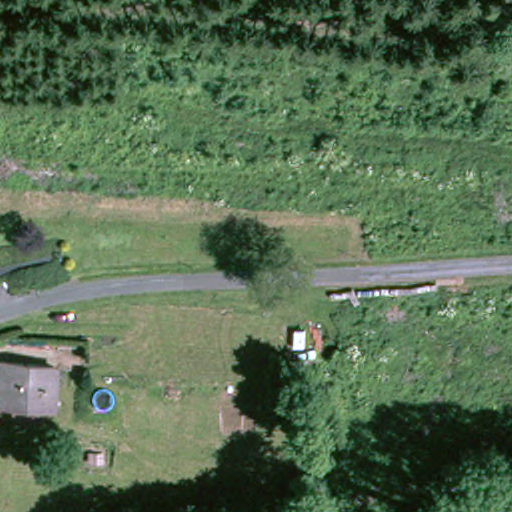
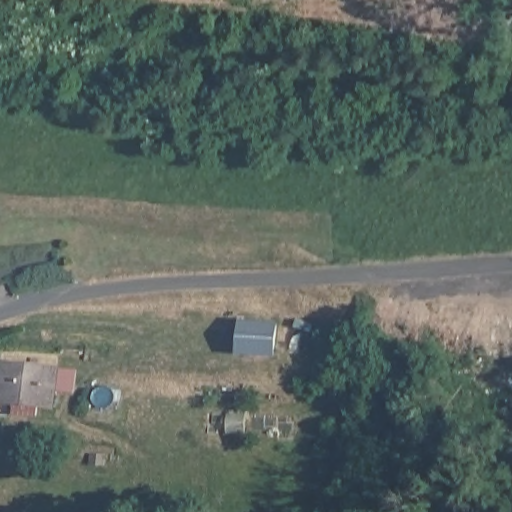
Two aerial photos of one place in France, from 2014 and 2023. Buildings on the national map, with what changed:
new [(240,317),(275,319),(272,353),(238,351),(240,317)]
unchanged [(0,369),(55,372),(52,410),(0,407),(0,369)]

